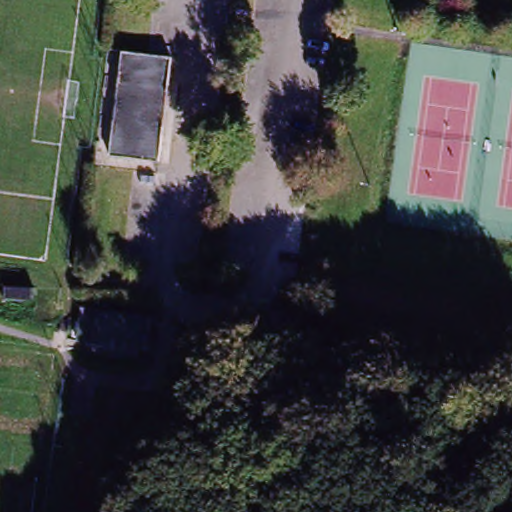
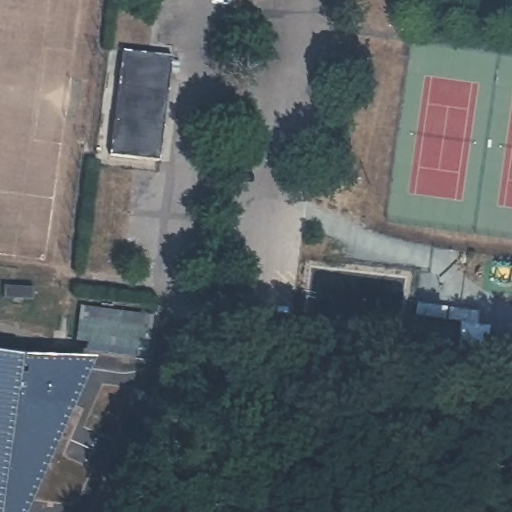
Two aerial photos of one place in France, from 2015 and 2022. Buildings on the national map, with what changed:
unchanged [(173,55),(160,160),(108,154),(121,48),(173,55)]
unchanged [(139,347),(138,356),(89,350),(89,341),(80,340),(83,307),(152,317),(150,349),(139,347)]
new [(19,358),(0,505),(0,355),(19,358)]
new [(19,358),(60,364),(56,406),(71,411),(25,512),(0,512),(0,505),(19,358)]
demolished [(117,443),(66,437),(73,378),(125,386),(117,443)]

